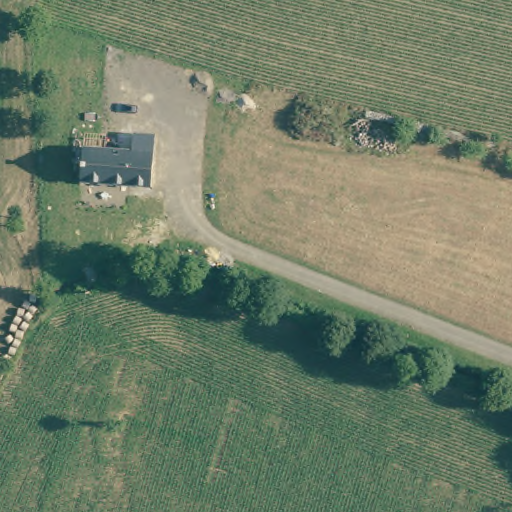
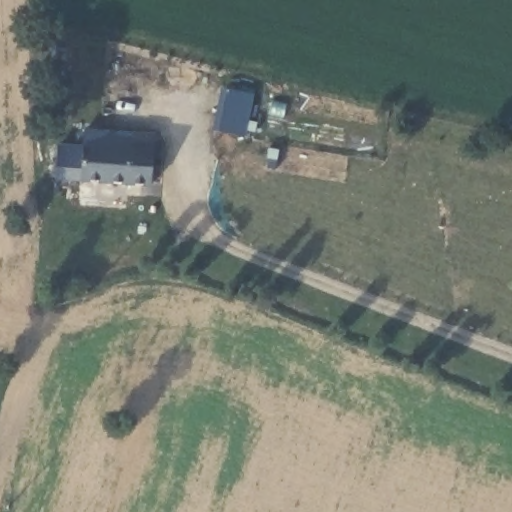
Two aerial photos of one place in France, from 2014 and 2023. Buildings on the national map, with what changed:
new [(233,92),(257,97),(249,134),(224,126),(233,92)]
unchanged [(143,151),(142,184),(73,180),(74,146),(143,151)]

